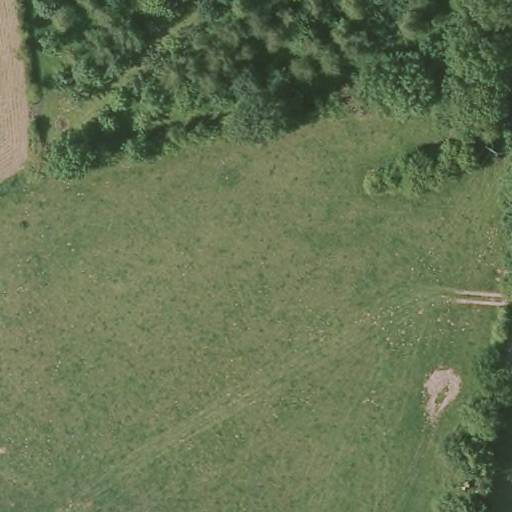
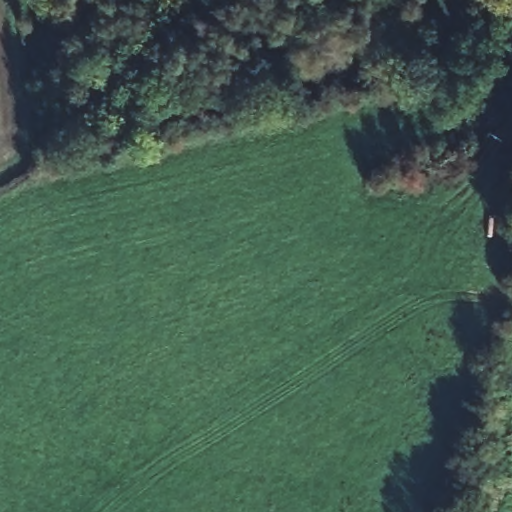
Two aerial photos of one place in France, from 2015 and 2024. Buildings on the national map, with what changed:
[]

